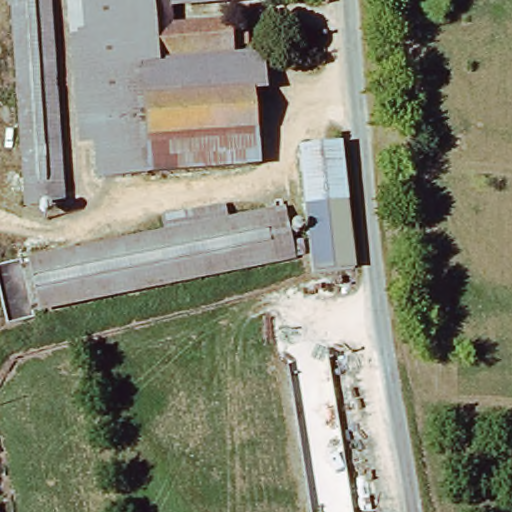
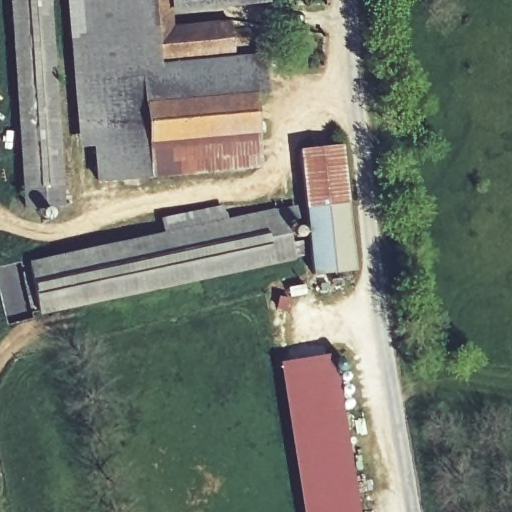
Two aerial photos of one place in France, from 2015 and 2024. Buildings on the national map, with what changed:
unchanged [(31,209),(15,0),(49,0),(63,206),(31,209)]
unchanged [(166,24),(226,22),(226,31),(244,30),(246,46),(229,49),(230,64),(133,72),(136,103),(248,93),(253,167),(99,180),(80,0),(163,0),(165,14),(166,24)]
unchanged [(165,14),(163,0),(265,0),(266,4),(165,14)]
unchanged [(246,63),(248,93),(136,103),(133,72),(230,64),(246,63)]
unchanged [(358,267),(315,271),(307,149),(345,146),(358,267)]
unchanged [(40,317),(32,265),(290,215),(299,263),(40,317)]
new [(18,262),(30,313),(5,319),(0,297),(0,266),(18,262)]
new [(329,353),(330,362),(339,379),(352,448),(361,512),(302,512),(278,361),(329,353)]

